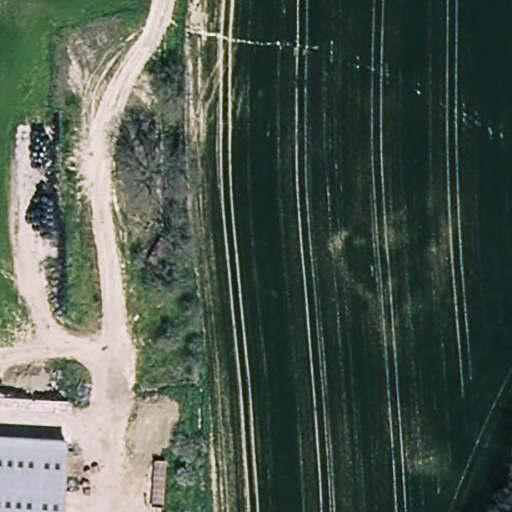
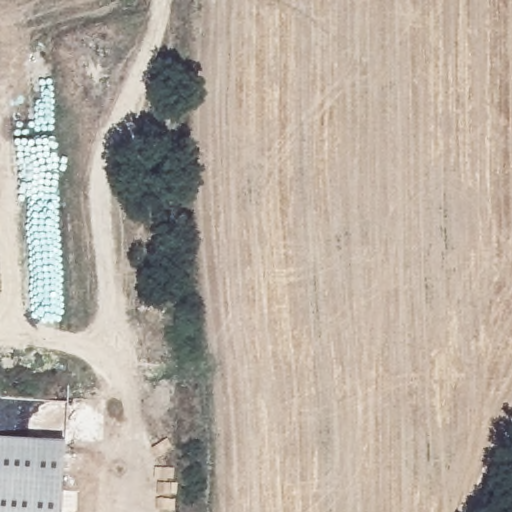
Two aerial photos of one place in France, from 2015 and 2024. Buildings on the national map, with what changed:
unchanged [(63,512),(0,512),(0,436),(66,439),(63,512)]

